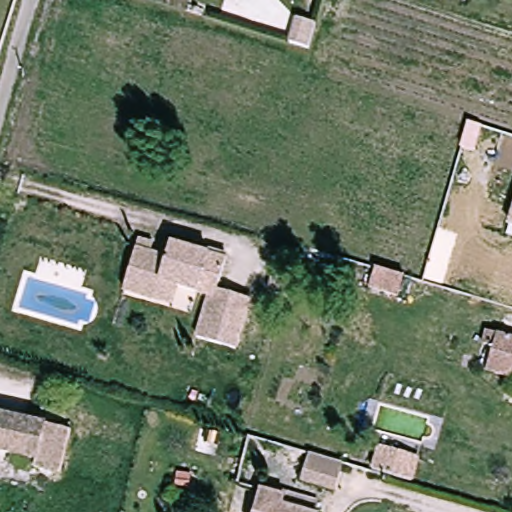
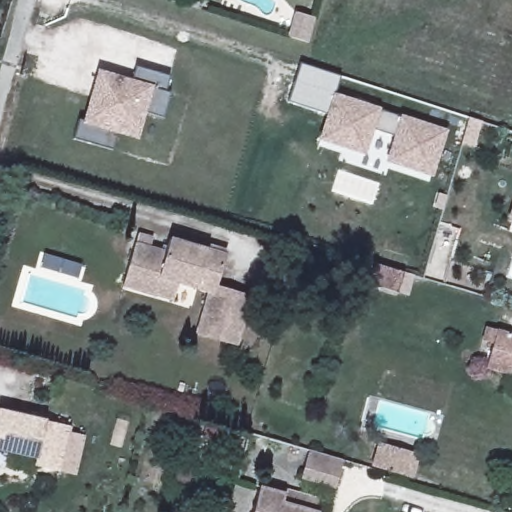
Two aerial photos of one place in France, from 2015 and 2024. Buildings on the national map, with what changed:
unchanged [(295,14),(314,20),(307,44),(288,38),(295,14)]
new [(381,108),(380,111),(400,116),(400,114),(448,130),(433,177),(385,162),(395,135),(375,128),(367,155),(319,139),(328,112),(289,100),(302,62),(341,76),(335,93),(381,108)]
new [(98,69),(134,78),(137,67),(171,76),(167,90),(171,91),(164,117),(147,112),(138,140),(118,134),(113,149),(75,138),(80,123),(82,122),(98,69)]
unchanged [(512,205),(512,224),(507,222),(512,205)]
unchanged [(159,243),(157,253),(173,257),(177,243),(214,254),(215,250),(234,255),(224,289),(258,299),(244,348),(206,337),(217,295),(186,286),(181,304),(161,299),(131,290),(145,240),(159,243)]
unchanged [(372,282),(373,277),(377,262),(397,268),(406,270),(402,286),(400,291),(372,282)]
unchanged [(489,342),(477,339),(481,326),(492,329),(512,335),(512,376),(482,367),(489,342)]
unchanged [(34,467),(36,458),(0,452),(0,414),(48,422),(70,427),(67,440),(61,472),(40,468),(34,467)]
unchanged [(384,441),(423,453),(415,477),(377,466),(384,441)]
unchanged [(314,449),(316,450),(348,459),(340,487),(306,478),(314,449)]
unchanged [(286,490),(287,486),(320,495),(316,508),(320,509),(319,512),(252,512),(261,482),(286,490)]

